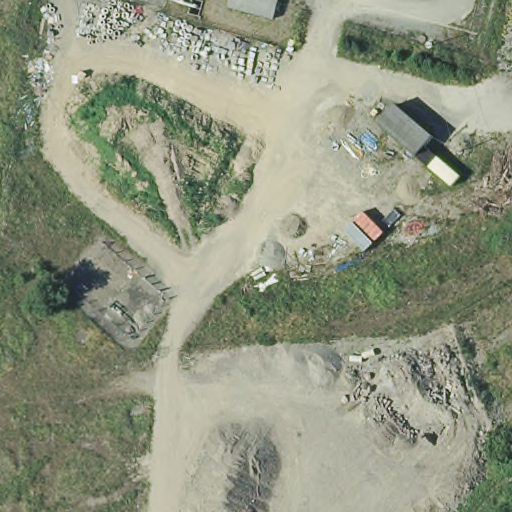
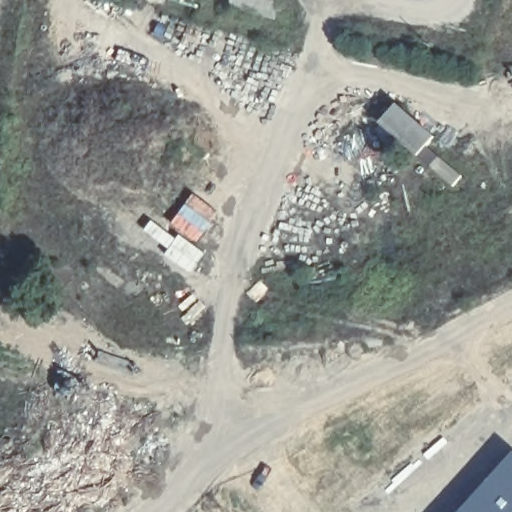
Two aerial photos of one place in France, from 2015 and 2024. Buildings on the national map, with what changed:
unchanged [(278,21),(231,9),(233,0),(282,0),(278,21)]
unchanged [(384,123),(401,106),(438,140),(421,158),(384,123)]
new [(460,512),(512,456),(512,512),(460,512)]

